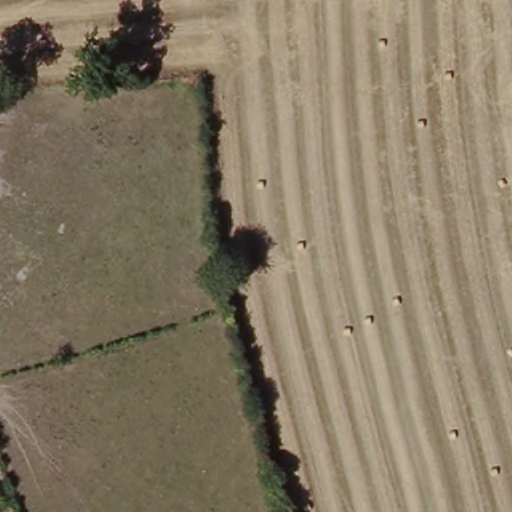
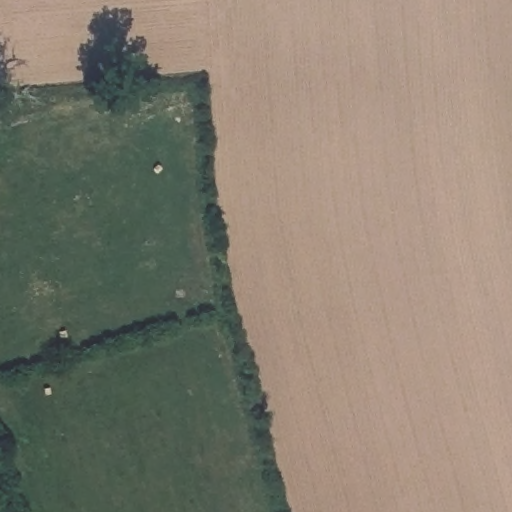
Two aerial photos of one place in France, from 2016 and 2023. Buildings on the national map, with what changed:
[]

